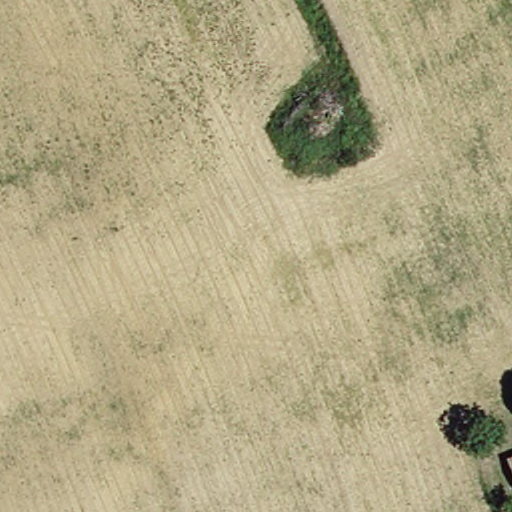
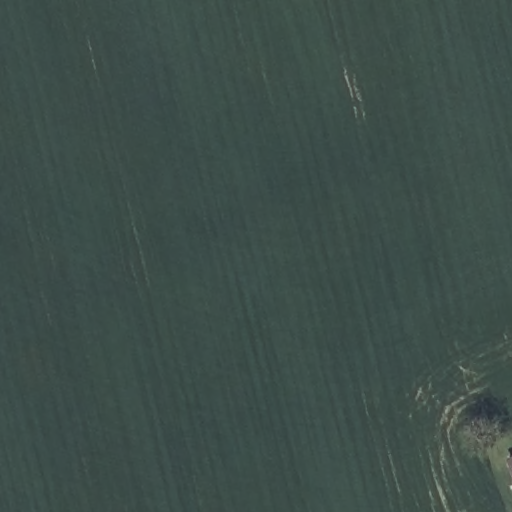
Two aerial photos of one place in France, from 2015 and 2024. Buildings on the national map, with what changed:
unchanged [(511,453),(512,453),(512,455),(511,453)]

